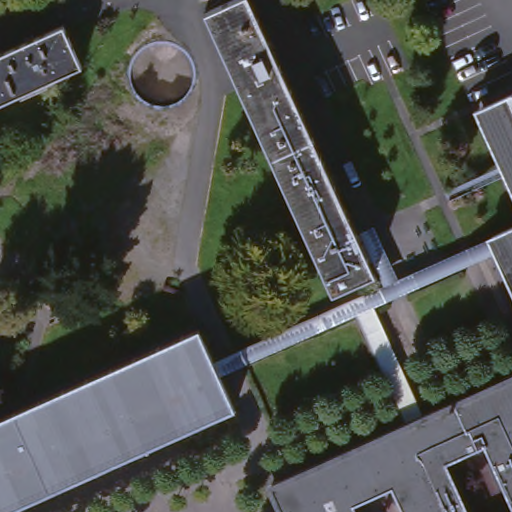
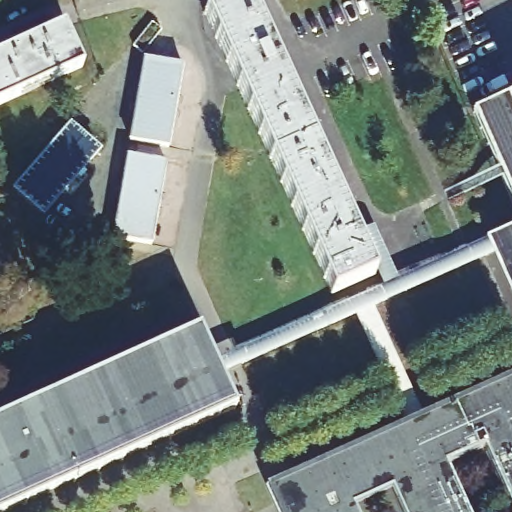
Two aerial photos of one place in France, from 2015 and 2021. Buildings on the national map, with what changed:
unchanged [(215,362),(245,345),(366,293),(354,280),(335,293),(342,285),(206,12),(233,0),(247,0),(375,269),(392,278),(417,265),(512,229),(512,308),(491,260),(378,311),(354,322),(252,368),(224,379),(234,413),(16,512),(0,512),(0,418),(201,329),(215,362)]
unchanged [(0,54),(64,25),(82,65),(0,104),(0,54)]
new [(182,65),(168,145),(130,140),(143,58),(182,65)]
unchanged [(470,111),(512,92),(512,195),(470,111)]
new [(127,155),(165,162),(150,245),(111,238),(127,155)]
unchanged [(402,421),(354,322),(378,311),(425,411),(512,373),(512,512),(509,512),(484,446),(442,462),(465,512),(401,512),(390,486),(352,505),(356,512),(276,512),(264,484),(402,421)]

